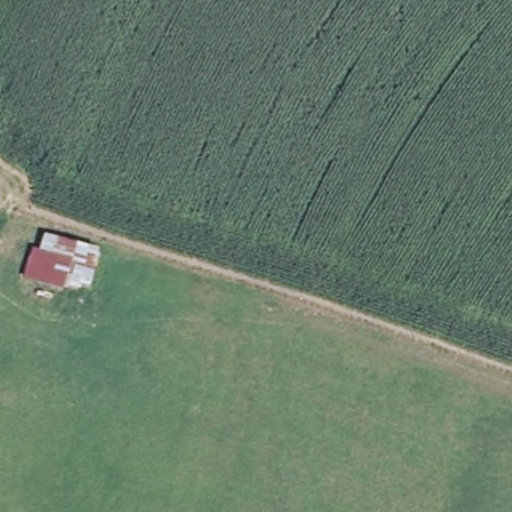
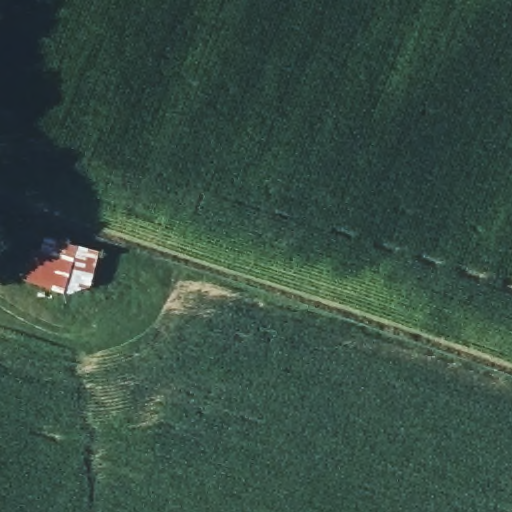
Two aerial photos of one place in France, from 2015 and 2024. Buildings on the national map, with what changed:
unchanged [(105,247),(91,297),(27,280),(42,230),(105,247)]

